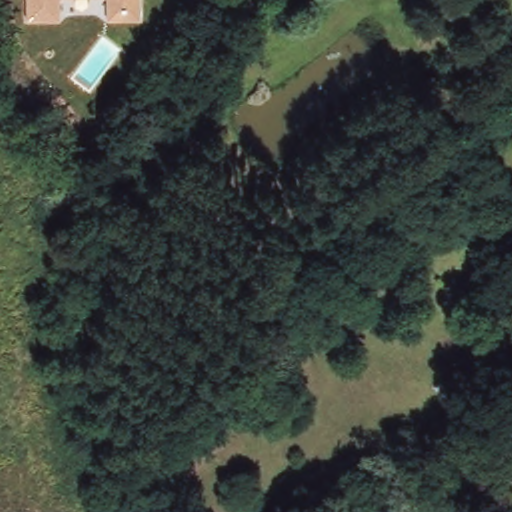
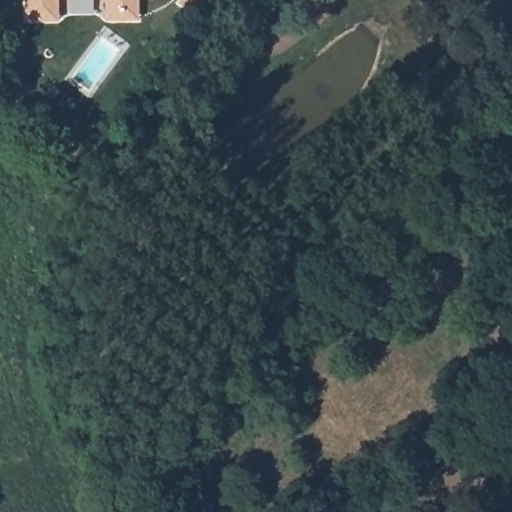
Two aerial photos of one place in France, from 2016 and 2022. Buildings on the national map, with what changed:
unchanged [(57,18),(26,19),(26,0),(57,0),(57,18)]
unchanged [(106,21),(105,0),(140,0),(141,21),(106,21)]

